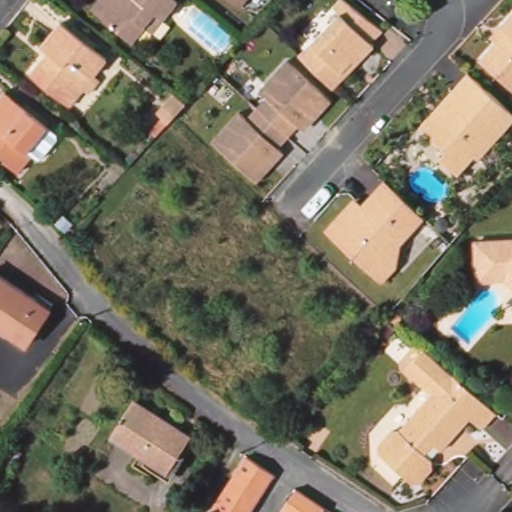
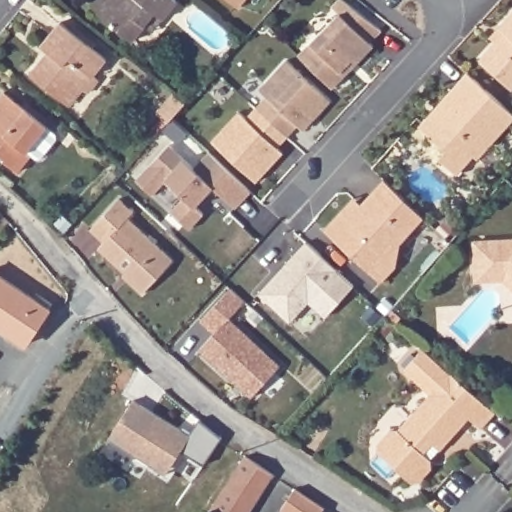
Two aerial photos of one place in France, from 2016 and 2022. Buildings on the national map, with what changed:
unchanged [(144,24),(131,39),(96,10),(90,5),(94,0),(175,0),(162,17),(152,30),(144,24)]
unchanged [(237,10),(226,0),(245,0),(237,10)]
unchanged [(327,95),(293,64),(338,15),(331,8),(339,0),(340,0),(376,33),(363,46),(367,50),(350,70),(340,81),(327,95)]
unchanged [(512,32),(500,21),(512,8),(512,32)]
unchanged [(29,73),(42,57),(47,50),(39,45),(59,20),(70,30),(73,25),(96,42),(92,47),(106,57),(92,74),(97,78),(87,91),(82,87),(69,104),(63,100),(29,73)]
unchanged [(475,60),(492,42),(486,36),(495,26),(500,21),(512,32),(512,85),(507,90),(475,60)]
unchanged [(265,167),(251,182),(205,141),(232,112),(241,120),(261,97),(252,90),(281,58),(326,100),(312,115),(298,130),(294,127),(292,126),(272,148),(274,150),(277,153),(265,167)]
unchanged [(468,156),(452,175),(434,159),(440,152),(421,135),(413,127),(417,124),(451,86),(463,73),(481,89),(512,117),(472,160),(468,156)]
unchanged [(46,128),(51,132),(56,135),(56,141),(40,160),(35,160),(31,157),(26,152),(12,169),(0,159),(0,157),(2,155),(0,154),(0,90),(46,128)]
unchanged [(176,91),(189,101),(172,121),(159,112),(176,91)]
new [(169,148),(195,171),(210,155),(252,192),(237,210),(215,189),(197,209),(206,216),(192,232),(172,215),(186,200),(167,184),(154,199),(137,184),(169,148)]
unchanged [(352,206),(359,213),(387,181),(427,219),(404,243),(398,273),(386,286),(328,232),(352,206)]
new [(99,250),(105,244),(91,231),(119,200),(134,214),(128,220),(174,262),(144,295),(128,281),(124,277),(126,275),(99,250)]
unchanged [(512,280),(476,280),(475,240),(512,241),(512,280)]
new [(307,245),(355,288),(326,320),(309,304),(291,325),(260,296),(307,245)]
unchanged [(45,310),(22,345),(0,331),(0,279),(45,310)]
new [(200,350),(215,335),(201,322),(232,289),(246,302),(230,320),(281,367),(252,398),(249,395),(237,383),(200,350)]
unchanged [(394,306),(402,313),(396,320),(388,312),(394,306)]
unchanged [(428,470),(416,483),(408,485),(377,456),(376,445),(387,433),(397,432),(428,398),(401,373),(419,351),(420,352),(428,360),(431,362),(465,393),(487,414),(491,417),(477,432),(466,421),(436,453),(428,462),(428,470)]
unchanged [(129,404),(186,441),(166,473),(138,455),(135,459),(106,441),(129,404)]
unchanged [(247,456),(273,475),(249,512),(211,512),(234,477),(247,456)]
unchanged [(322,512),(283,512),(296,495),(322,512)]

